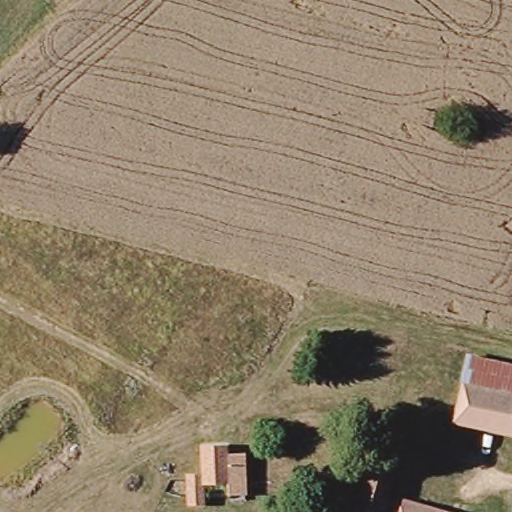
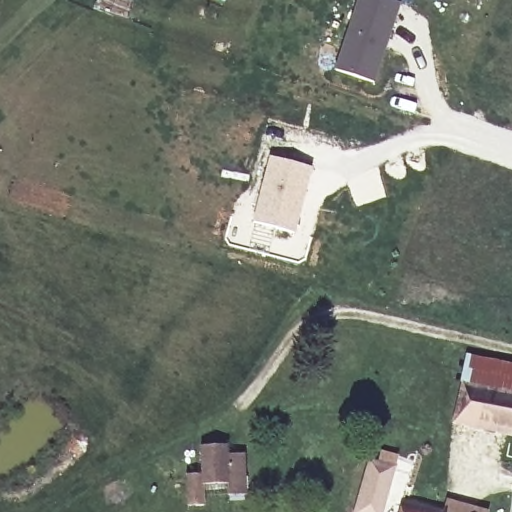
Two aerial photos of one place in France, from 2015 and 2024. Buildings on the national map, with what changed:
new [(400,4),(375,84),(336,71),(359,0),(387,0),(400,4)]
new [(295,233),(253,222),(270,157),(311,169),(295,233)]
unchanged [(460,382),(464,356),(512,364),(512,391),(460,382)]
unchanged [(451,426),(460,382),(512,391),(512,436),(451,426)]
unchanged [(204,511),(188,511),(188,478),(203,479),(204,441),(230,441),(230,452),(245,454),(245,497),(230,495),(230,490),(205,489),(204,511)]
unchanged [(395,456),(383,512),(358,512),(368,462),(375,463),(378,452),(395,456)]
unchanged [(439,512),(399,512),(402,502),(439,512)]

